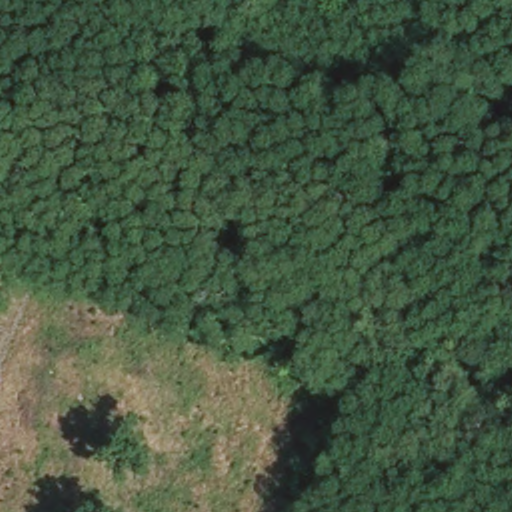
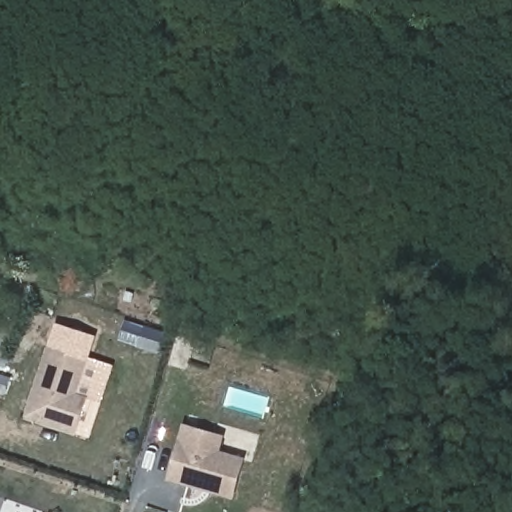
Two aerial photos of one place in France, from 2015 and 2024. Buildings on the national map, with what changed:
new [(97,337),(90,357),(50,345),(57,325),(97,337)]
new [(109,364),(98,398),(103,400),(90,439),(27,417),(50,345),(109,364)]
new [(182,425),(224,437),(221,452),(243,457),(232,498),(168,482),(182,425)]

